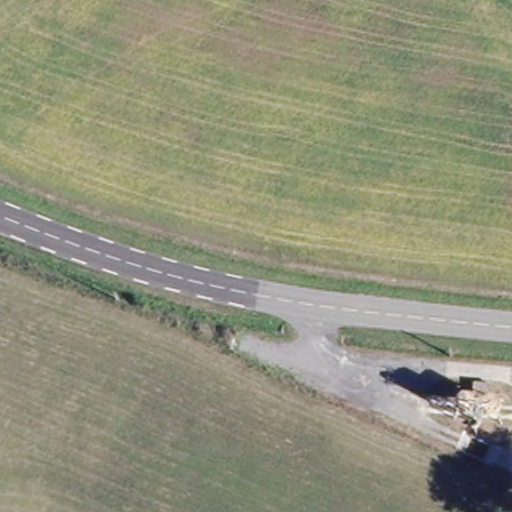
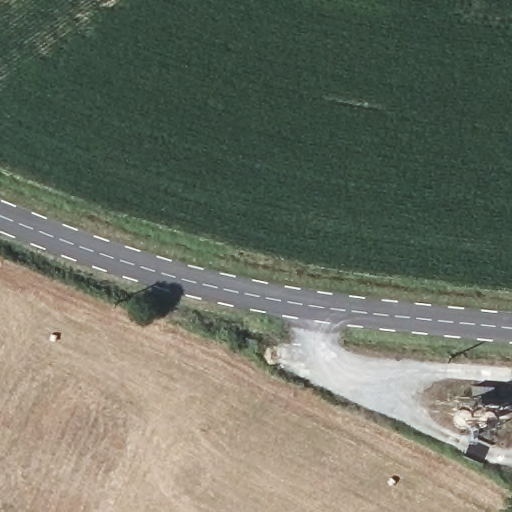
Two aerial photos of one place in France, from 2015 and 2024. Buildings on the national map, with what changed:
unchanged [(467,403),(475,409),(484,405),(492,407),(495,418),(493,423),(481,425),(471,421),(456,425),(447,422),(447,410),(458,402),(467,403)]

